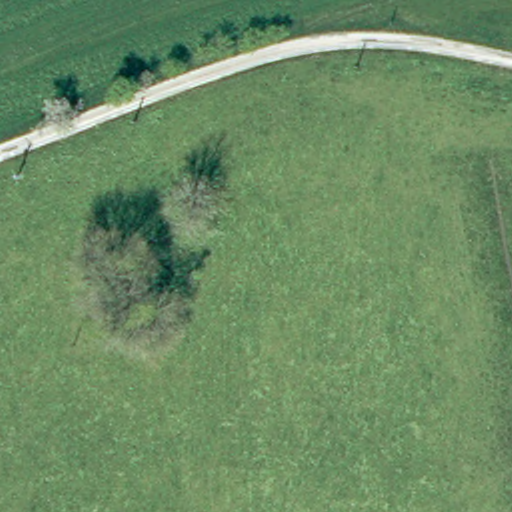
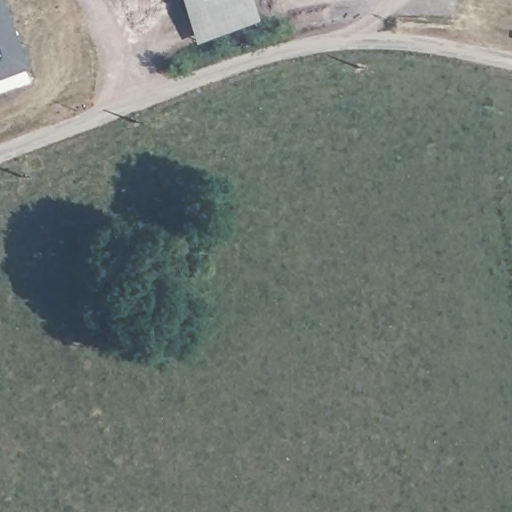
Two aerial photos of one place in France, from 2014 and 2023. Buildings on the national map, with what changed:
new [(0,78),(0,0),(1,0),(25,68),(0,78)]
new [(194,44),(178,0),(249,0),(256,21),(194,44)]

